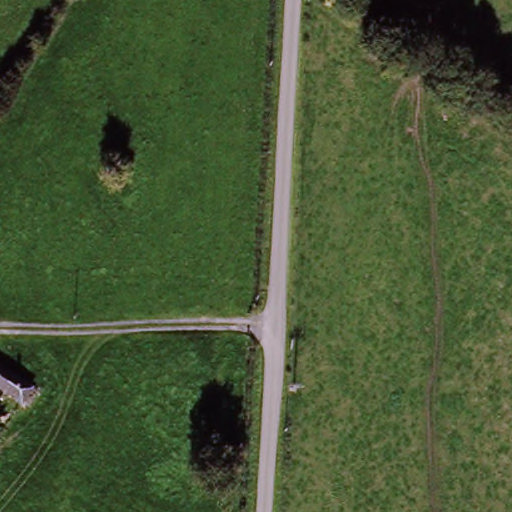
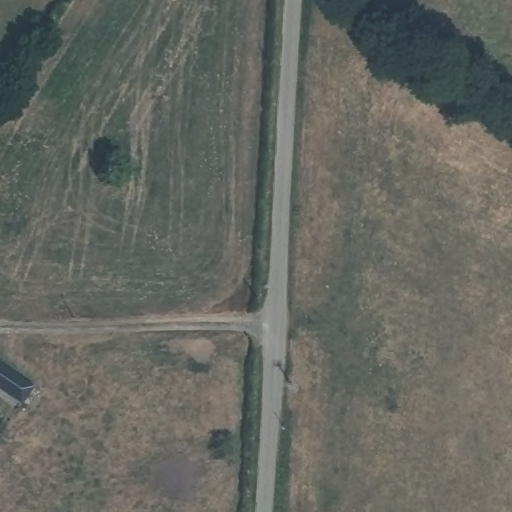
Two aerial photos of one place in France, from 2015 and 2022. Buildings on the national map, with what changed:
unchanged [(31,402),(21,416),(0,401),(0,381),(31,402)]

